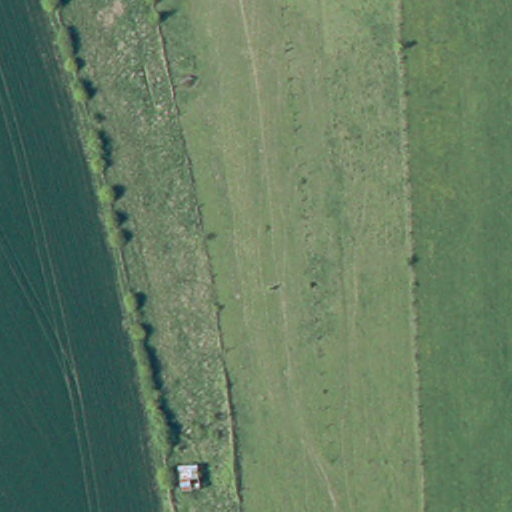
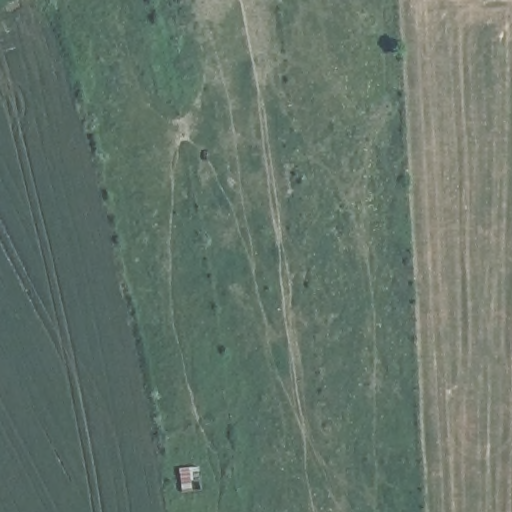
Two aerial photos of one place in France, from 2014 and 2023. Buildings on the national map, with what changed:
unchanged [(182,492),(180,467),(198,465),(202,489),(182,492)]

